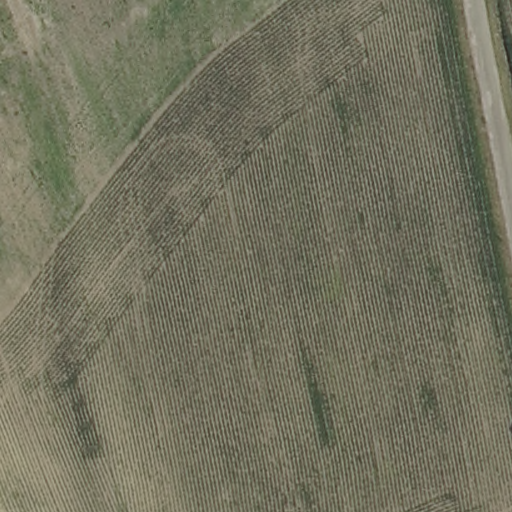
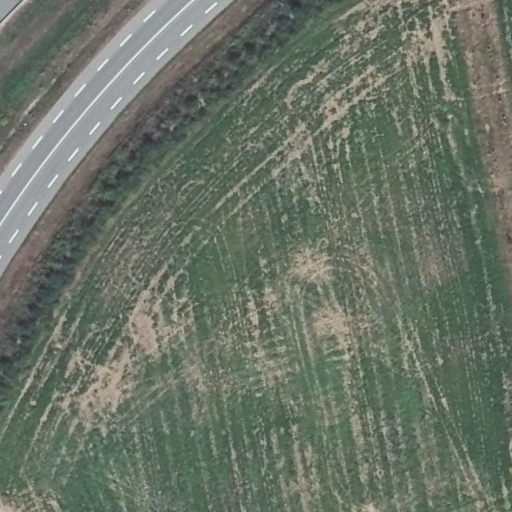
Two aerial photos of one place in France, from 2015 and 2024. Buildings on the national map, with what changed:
new [(0,0),(20,0),(0,20),(0,0)]

